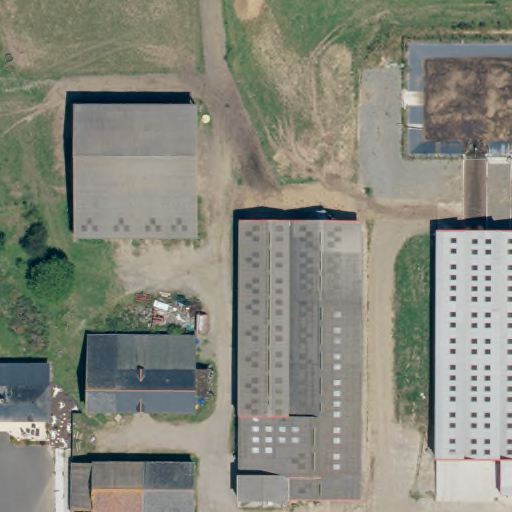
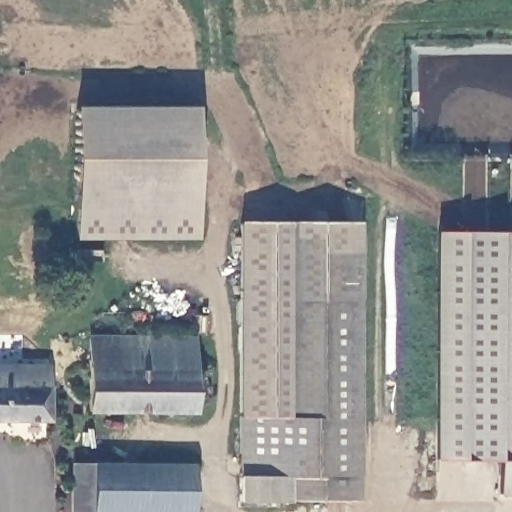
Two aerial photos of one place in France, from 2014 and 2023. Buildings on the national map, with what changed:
unchanged [(196,239),(75,239),(75,108),(195,107),(196,239)]
unchanged [(361,500),(301,498),(301,477),(254,477),(257,222),(365,224),(361,500)]
unchanged [(501,497),(501,462),(436,462),(437,232),(512,232),(512,497),(501,497)]
unchanged [(214,411),(196,411),(195,426),(89,424),(89,347),(145,350),(196,351),(196,383),(214,382),(214,411)]
unchanged [(0,423),(0,367),(52,368),(52,424),(0,423)]
unchanged [(200,512),(61,512),(60,467),(200,467),(200,512)]

